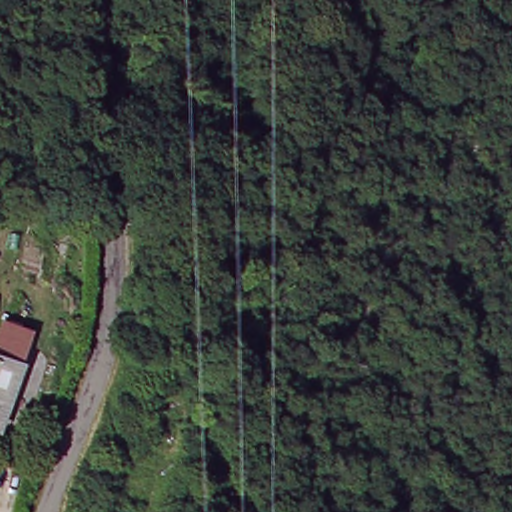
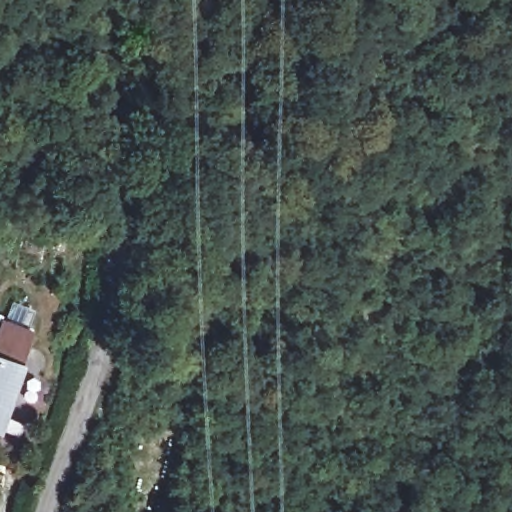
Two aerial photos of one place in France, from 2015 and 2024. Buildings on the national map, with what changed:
unchanged [(19,340),(0,413),(0,333),(19,340)]

